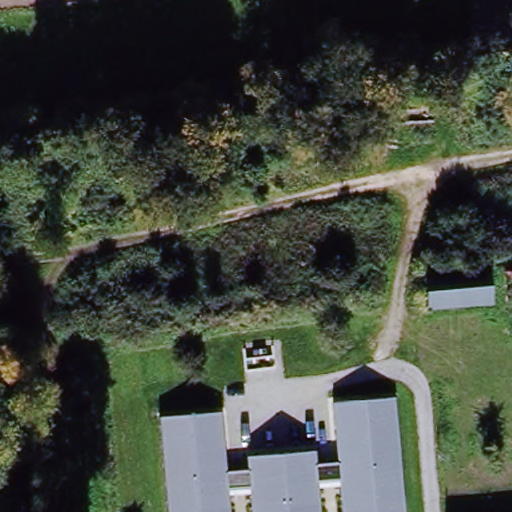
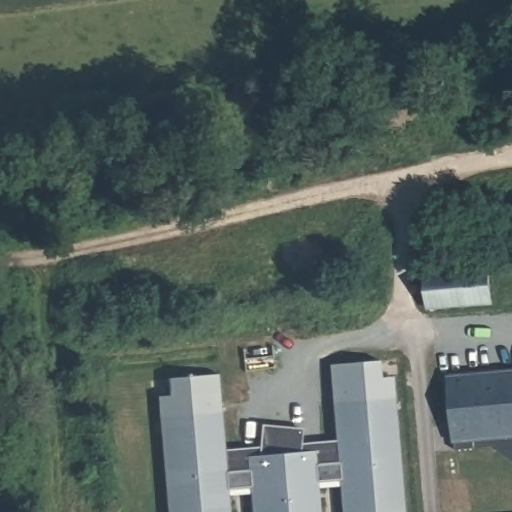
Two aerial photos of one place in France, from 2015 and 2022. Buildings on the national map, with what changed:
unchanged [(430,270),(474,268),(474,276),(496,275),(498,306),(432,310),(430,270)]
demolished [(149,316),(186,311),(191,340),(152,346),(149,316)]
new [(382,361),(384,377),(395,377),(395,397),(334,403),(329,366),(382,361)]
new [(512,370),(512,439),(452,444),(449,376),(512,370)]
new [(218,374),(221,412),(159,417),(157,396),(168,395),(167,379),(218,374)]
unchanged [(221,412),(227,471),(247,469),(246,456),(315,450),(317,463),(337,461),(334,403),(395,397),(403,512),(341,512),(339,483),(318,485),(320,512),(251,512),(250,491),(228,492),(230,512),(167,512),(159,417),(221,412)]

